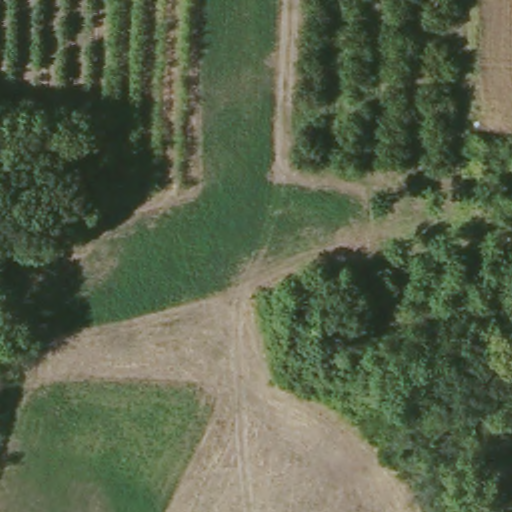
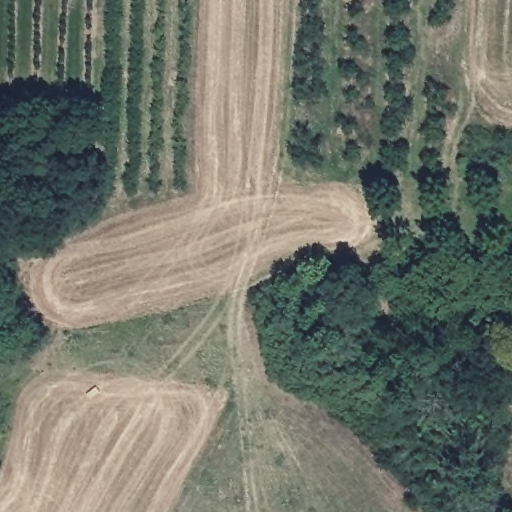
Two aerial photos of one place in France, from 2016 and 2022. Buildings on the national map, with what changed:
unchanged [(479,156),(481,172),(467,173),(464,159),(467,158),(479,156)]

